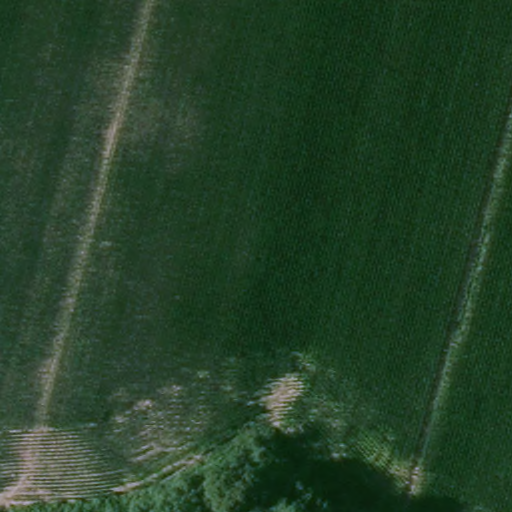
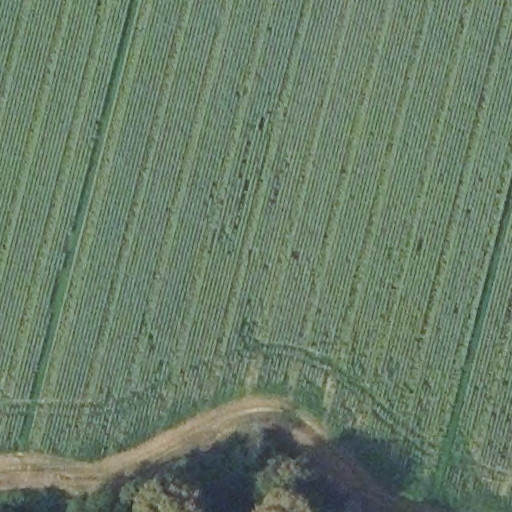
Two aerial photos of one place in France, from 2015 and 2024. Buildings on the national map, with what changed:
[]

